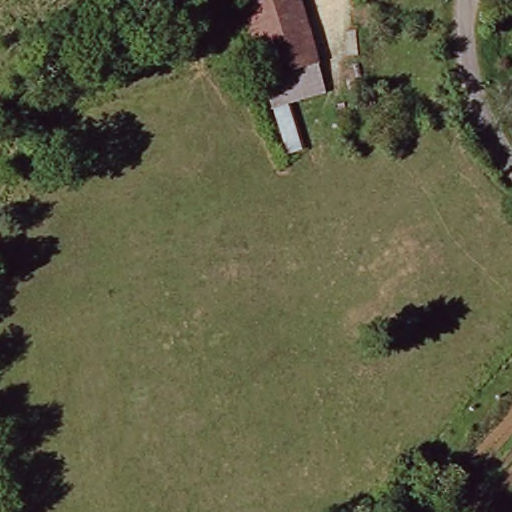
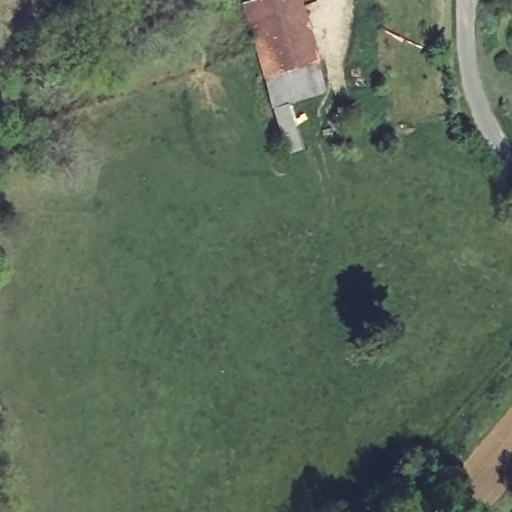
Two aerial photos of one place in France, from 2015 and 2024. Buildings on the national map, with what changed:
unchanged [(243,5),(259,0),(302,0),(321,64),(328,96),(275,110),(268,81),(243,5)]

